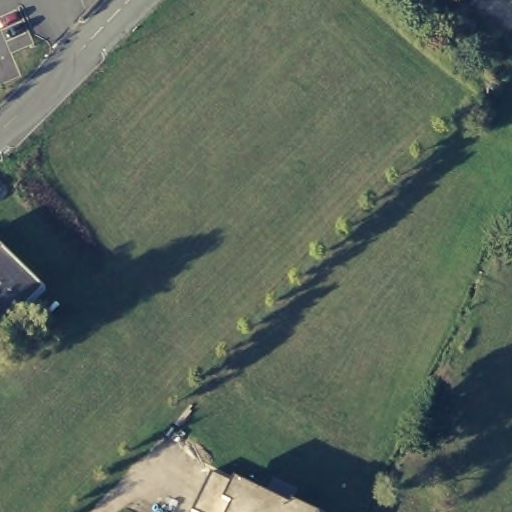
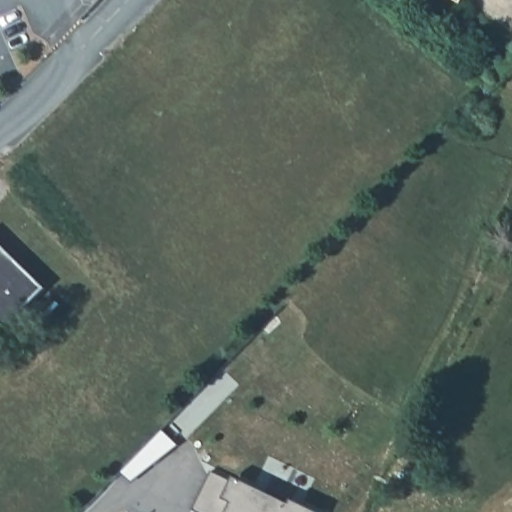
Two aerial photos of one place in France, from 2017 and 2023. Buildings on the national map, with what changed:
unchanged [(50,287),(0,337),(0,241),(50,287)]
unchanged [(211,473),(233,481),(289,507),(291,503),(311,512),(195,512),(192,510),(211,473)]

